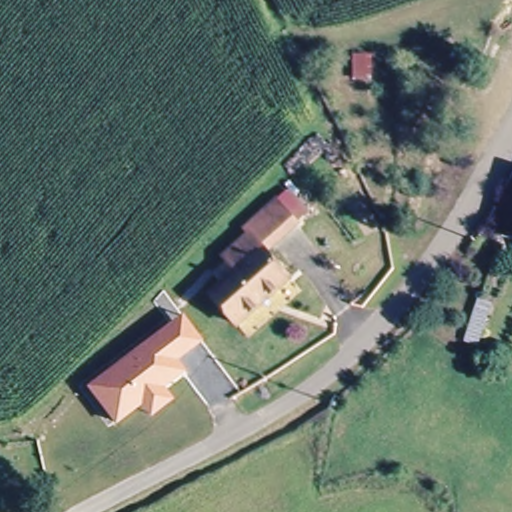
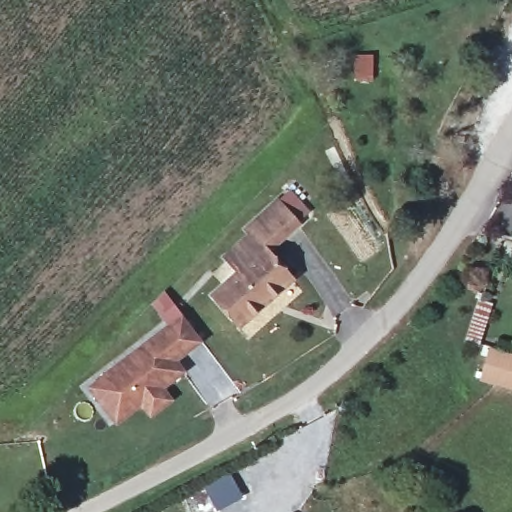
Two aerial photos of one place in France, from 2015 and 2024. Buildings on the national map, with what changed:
unchanged [(268,255),(295,286),(241,331),(216,300),(242,277),(229,262),(255,240),(251,235),(283,207),(300,227),(268,255)]
unchanged [(115,425),(86,387),(181,313),(202,341),(177,361),(185,372),(164,387),(173,399),(150,417),(140,407),(115,425)]
new [(512,355),(512,391),(479,381),(489,348),(512,355)]

